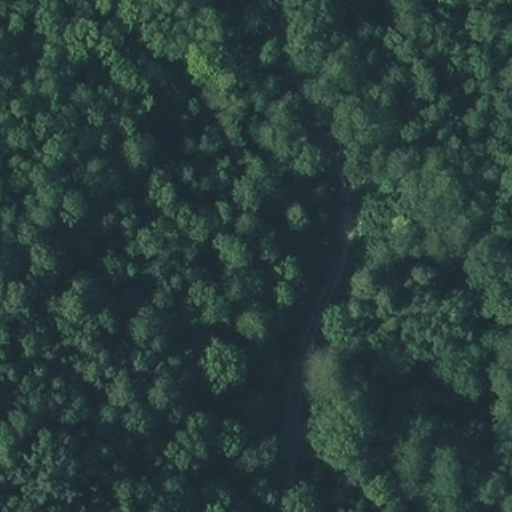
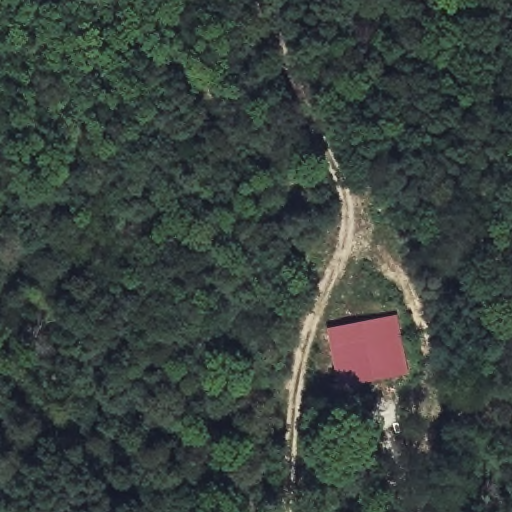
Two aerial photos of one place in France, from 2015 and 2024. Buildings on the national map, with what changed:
new [(398,313),(409,375),(338,389),(326,327),(398,313)]
demolished [(330,334),(376,327),(382,368),(336,375),(330,334)]

